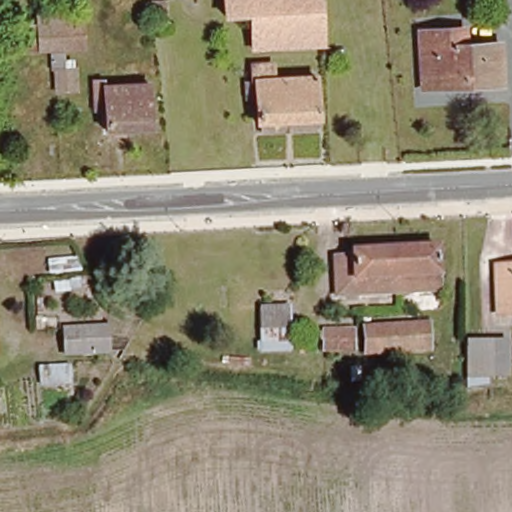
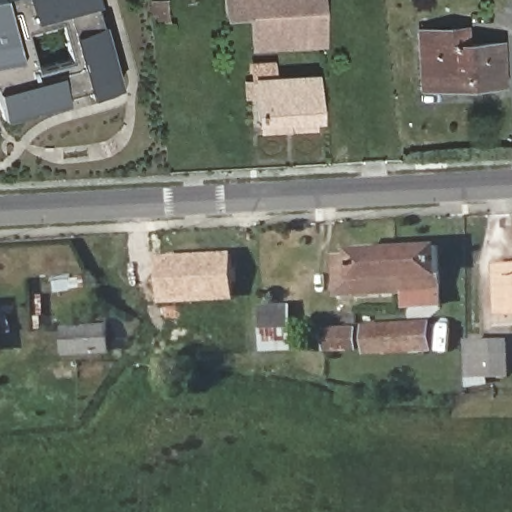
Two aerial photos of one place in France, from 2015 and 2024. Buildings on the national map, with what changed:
new [(90,94),(89,88),(64,93),(67,102),(0,119),(0,117),(0,0),(97,0),(120,85),(90,94)]
unchanged [(250,16),(222,18),(221,0),(320,0),(321,26),(251,30),(250,16)]
demolished [(42,49),(38,14),(60,12),(84,9),(89,44),(42,49)]
unchanged [(322,41),(252,46),(251,30),(321,26),(322,41)]
unchanged [(421,31),(453,30),(468,29),(468,48),(501,47),(503,85),(424,87),(421,31)]
demolished [(66,59),(75,59),(74,66),(78,66),(78,90),(56,91),(56,72),(51,72),(51,54),(66,53),(66,59)]
unchanged [(261,123),(257,67),(276,66),(277,83),(322,81),(322,120),(261,123)]
demolished [(101,125),(97,87),(151,83),(155,119),(101,125)]
unchanged [(337,290),(337,253),(351,253),(351,247),(392,247),(393,290),(337,290)]
unchanged [(393,290),(392,247),(435,247),(435,289),(393,290)]
new [(234,300),(160,303),(156,255),(231,251),(234,300)]
unchanged [(512,266),(512,312),(499,312),(498,266),(512,266)]
unchanged [(263,337),(263,316),(290,316),(290,337),(263,337)]
unchanged [(115,351),(71,351),(71,324),(94,324),(115,324),(115,342),(115,351)]
unchanged [(390,357),(390,352),(365,351),(365,324),(425,327),(425,358),(390,357)]
unchanged [(327,350),(327,328),(353,329),(353,350),(327,350)]
unchanged [(466,377),(466,363),(466,342),(507,343),(507,378),(466,377)]

